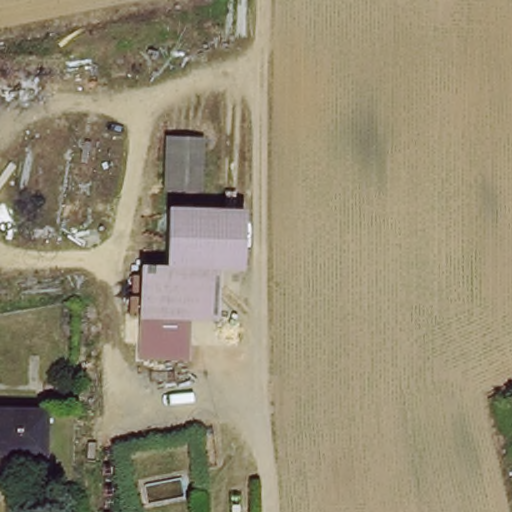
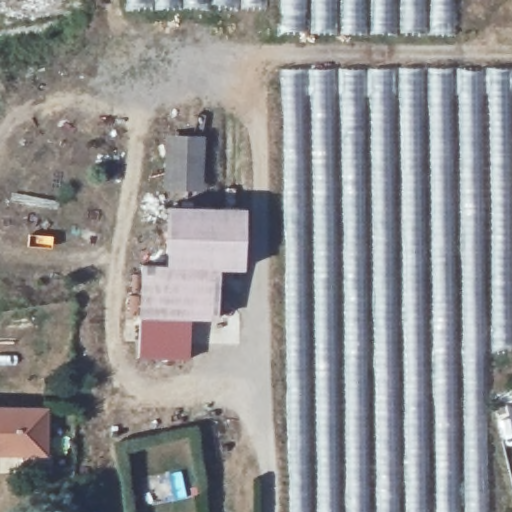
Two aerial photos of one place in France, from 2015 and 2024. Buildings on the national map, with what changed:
new [(445,37),(275,29),(268,7),(119,30),(120,0),(446,0),(445,37)]
new [(512,70),(512,354),(488,355),(487,512),(285,512),(278,68),(512,70)]
unchanged [(157,139),(200,139),(198,191),(160,190),(157,139)]
unchanged [(165,208),(242,210),(240,270),(215,269),(164,268),(165,208)]
unchanged [(186,318),(138,318),(139,292),(139,268),(164,268),(215,269),(215,279),(214,319),(186,318)]
new [(186,318),(188,318),(186,361),(137,359),(138,318),(186,318)]
new [(512,433),(505,404),(512,403),(512,433)]
unchanged [(47,410),(45,452),(0,450),(0,409),(47,410)]

